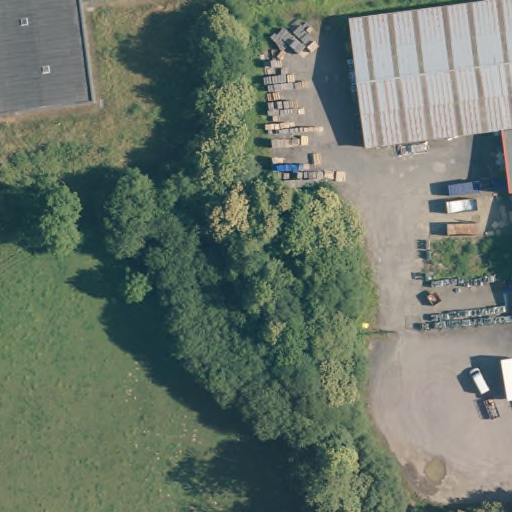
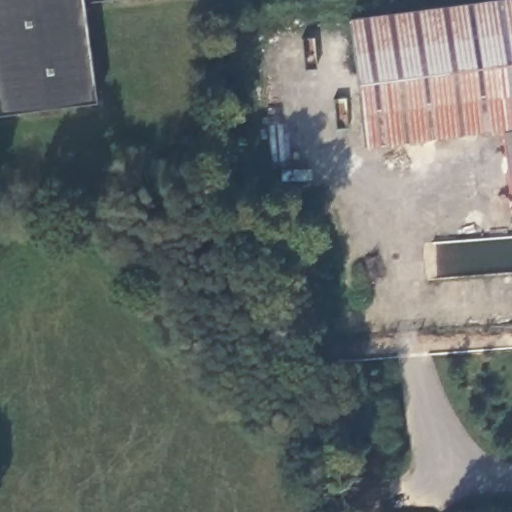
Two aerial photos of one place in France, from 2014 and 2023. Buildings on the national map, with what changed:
unchanged [(95,103),(0,115),(0,0),(112,0),(82,4),(95,103)]
unchanged [(508,193),(505,170),(500,130),(365,147),(348,21),(506,0),(512,0),(512,192),(508,193)]

